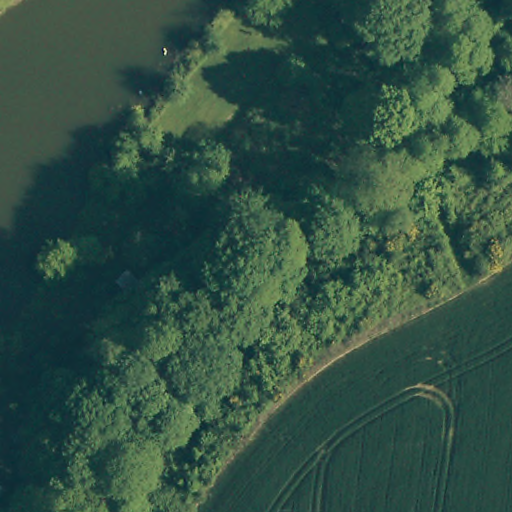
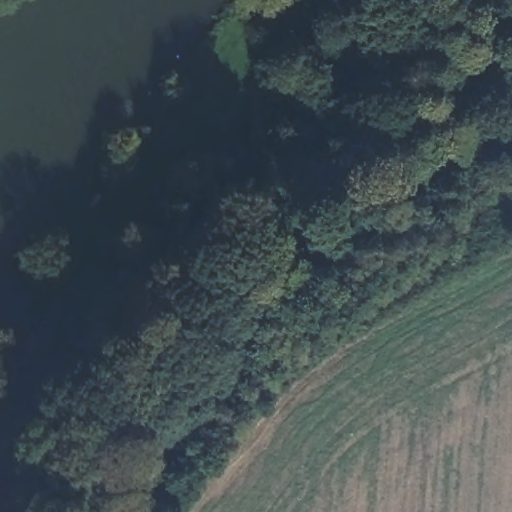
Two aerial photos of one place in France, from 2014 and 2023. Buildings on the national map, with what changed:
unchanged [(132,289),(122,298),(110,285),(120,276),(132,289)]

